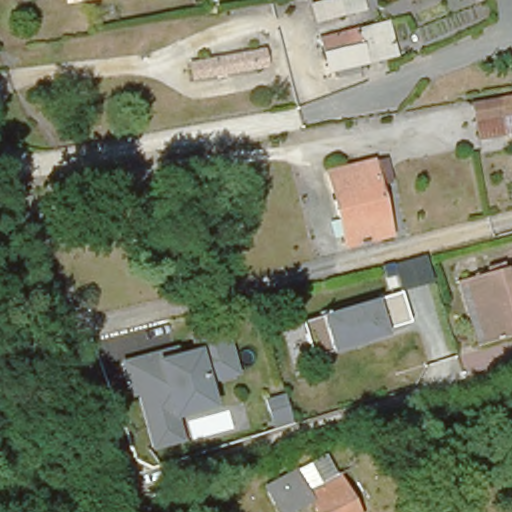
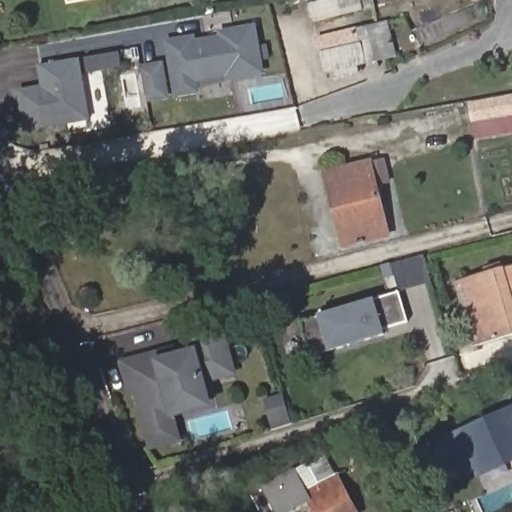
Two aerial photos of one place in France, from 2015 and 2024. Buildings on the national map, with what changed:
unchanged [(73,1),(72,0),(75,0),(73,1)]
unchanged [(377,8),(315,24),(310,6),(331,0),(374,0),(377,8)]
new [(195,39),(218,35),(217,32),(257,24),(265,75),(228,82),(226,77),(199,81),(200,93),(174,98),(164,41),(194,34),(195,39)]
unchanged [(396,56),(329,72),(321,40),(387,24),(396,56)]
demolished [(258,50),(262,67),(189,81),(185,64),(258,50)]
new [(26,132),(18,90),(40,85),(37,66),(80,58),(90,120),(26,132)]
new [(164,67),(169,98),(149,102),(144,71),(164,67)]
unchanged [(471,106),(512,98),(512,133),(477,140),(471,106)]
unchanged [(344,247),(326,174),(369,164),(384,161),(391,183),(376,187),(388,236),(344,247)]
unchanged [(471,340),(454,281),(512,264),(512,327),(471,340)]
unchanged [(385,330),(387,335),(313,357),(300,322),(401,292),(411,323),(385,330)]
unchanged [(238,381),(208,388),(213,408),(174,417),(183,443),(148,452),(134,400),(129,401),(119,361),(149,353),(151,359),(174,352),(169,337),(224,323),(238,381)]
new [(477,480),(453,432),(512,407),(512,466),(477,480)]
unchanged [(324,451),(333,467),(336,466),(358,506),(345,512),(322,512),(312,495),(298,502),(279,512),(263,482),(282,472),(295,463),(296,466),(324,451)]

